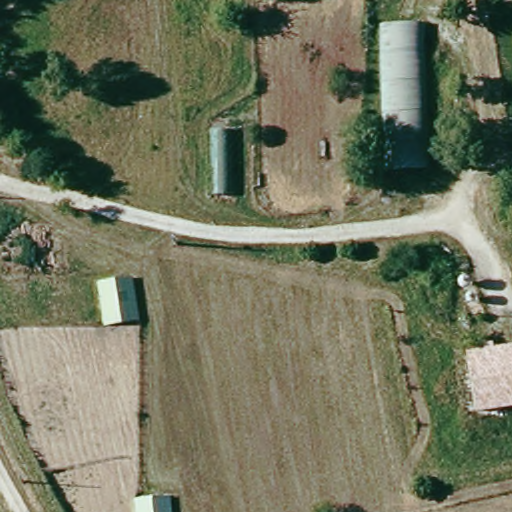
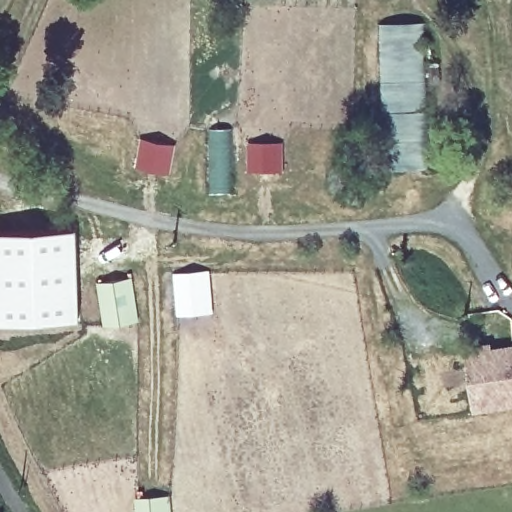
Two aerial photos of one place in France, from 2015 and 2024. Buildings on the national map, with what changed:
unchanged [(508,0),(512,0),(512,29),(508,0)]
unchanged [(427,174),(386,174),(379,27),(422,25),(427,174)]
unchanged [(210,127),(230,127),(234,193),(212,194),(210,127)]
new [(140,137),(174,144),(167,175),(134,168),(140,137)]
new [(80,318),(0,320),(0,229),(76,226),(80,318)]
new [(173,274),(210,271),(213,314),(178,317),(173,274)]
unchanged [(96,281),(133,278),(140,319),(102,325),(96,281)]
unchanged [(475,413),(465,357),(512,352),(512,410),(475,413)]
unchanged [(134,497),(170,494),(172,512),(136,512),(134,497)]

